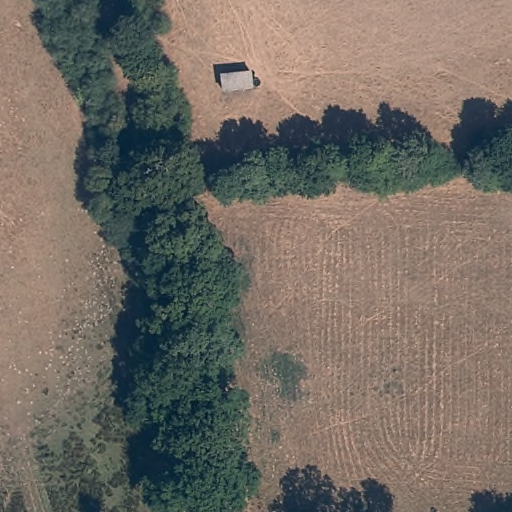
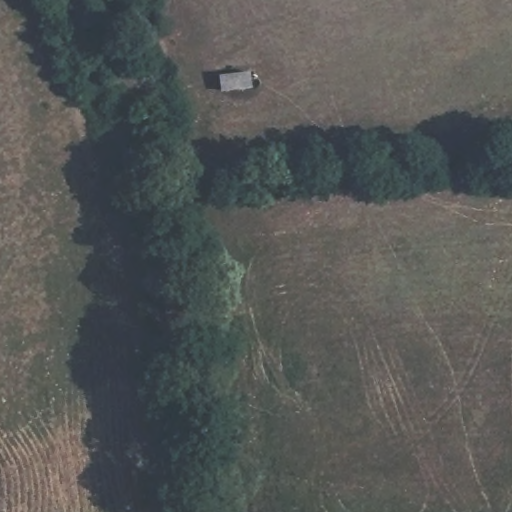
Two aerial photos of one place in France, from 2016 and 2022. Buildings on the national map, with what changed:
unchanged [(221,77),(255,75),(258,95),(224,99),(221,77)]

